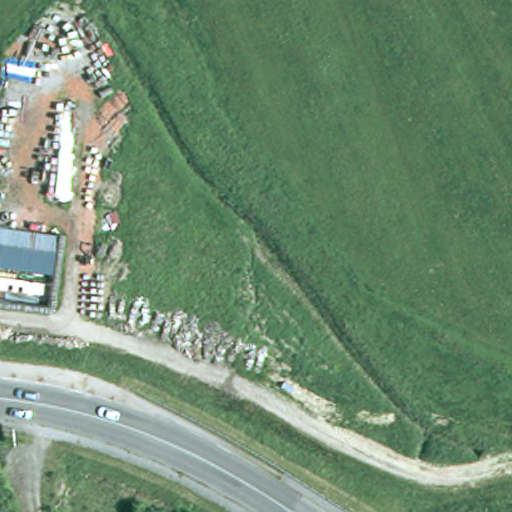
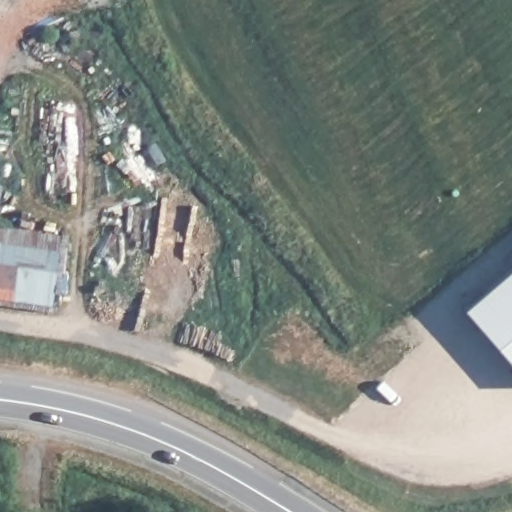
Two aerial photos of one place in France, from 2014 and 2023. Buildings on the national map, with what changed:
unchanged [(54,270),(0,264),(0,226),(59,234),(54,270)]
new [(512,272),(512,362),(467,311),(512,272)]

